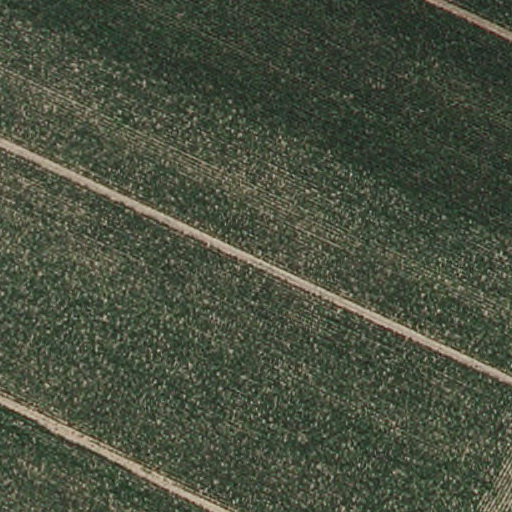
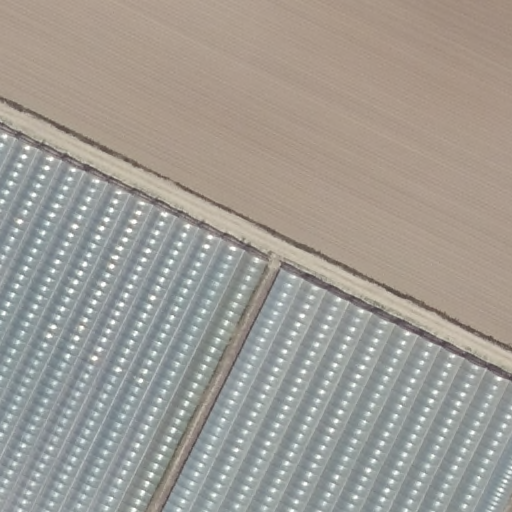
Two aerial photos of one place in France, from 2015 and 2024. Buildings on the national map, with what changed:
demolished [(0,350),(0,124),(229,239),(122,411),(0,350)]
new [(264,264),(142,512),(0,512),(0,130),(264,264)]
demolished [(257,254),(512,385),(512,512),(320,512),(156,427),(257,254)]
new [(512,491),(502,512),(164,512),(280,272),(512,384),(512,491)]

